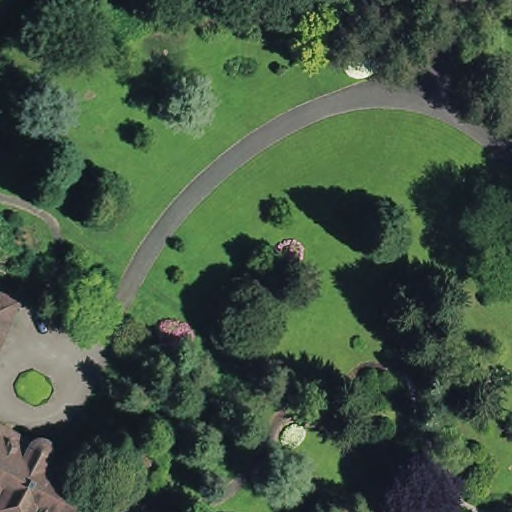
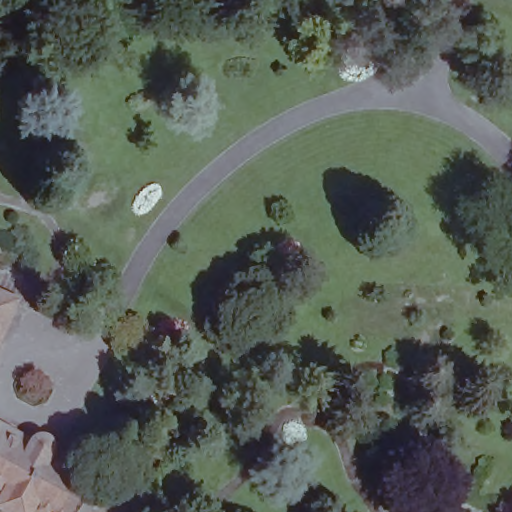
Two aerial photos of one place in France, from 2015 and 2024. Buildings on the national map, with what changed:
unchanged [(11,308),(5,323),(0,335),(0,303),(11,308)]
unchanged [(178,446),(171,460),(144,447),(151,432),(178,446)]
unchanged [(31,451),(33,447),(37,444),(47,445),(50,448),(51,453),(49,461),(88,482),(72,512),(0,512),(0,504),(1,502),(0,501),(0,434),(31,451)]

